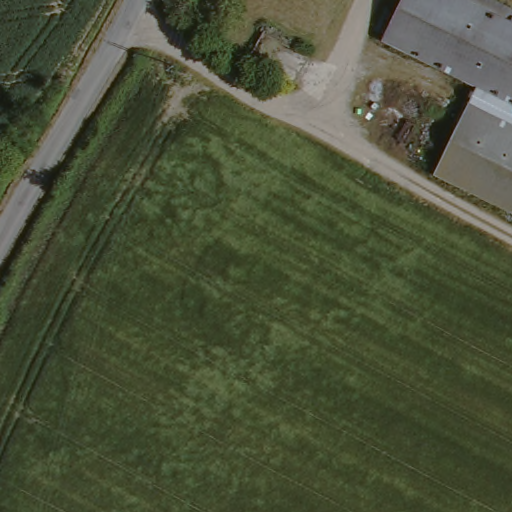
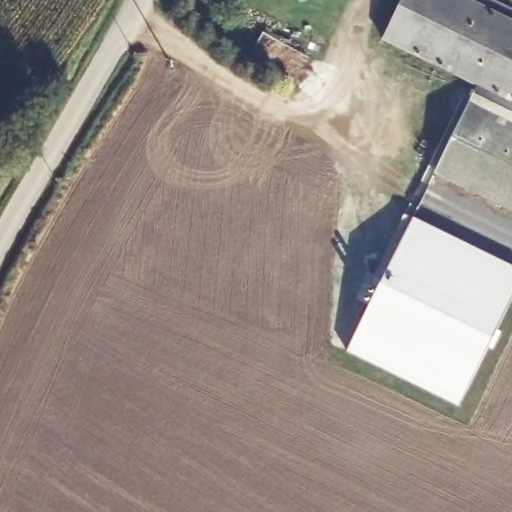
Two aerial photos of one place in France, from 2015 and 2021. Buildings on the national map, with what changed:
unchanged [(512,17),(512,100),(388,38),(406,0),(478,0),(512,17)]
unchanged [(475,99),(512,118),(512,211),(436,173),(475,99)]
new [(512,264),(512,298),(461,405),(347,351),(412,217),(512,264)]

